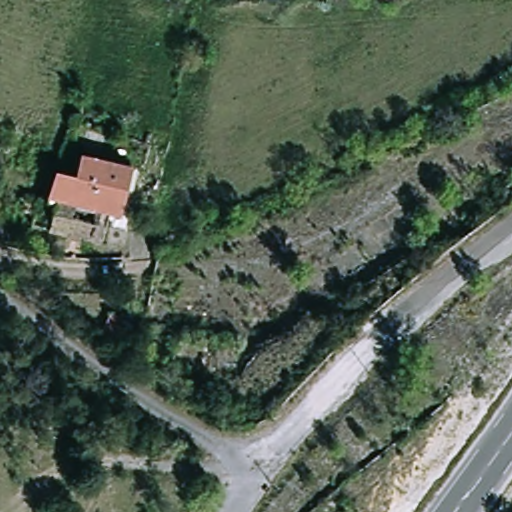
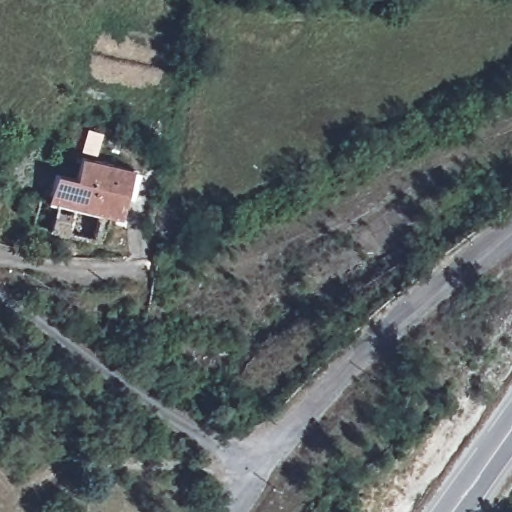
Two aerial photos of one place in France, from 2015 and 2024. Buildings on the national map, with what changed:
unchanged [(109,215),(103,214),(60,203),(50,200),(58,172),(77,179),(83,157),(97,159),(132,170),(129,185),(122,216),(109,215)]
unchanged [(60,203),(103,214),(95,241),(52,231),(60,203)]
unchanged [(105,338),(110,314),(132,318),(127,343),(105,338)]

